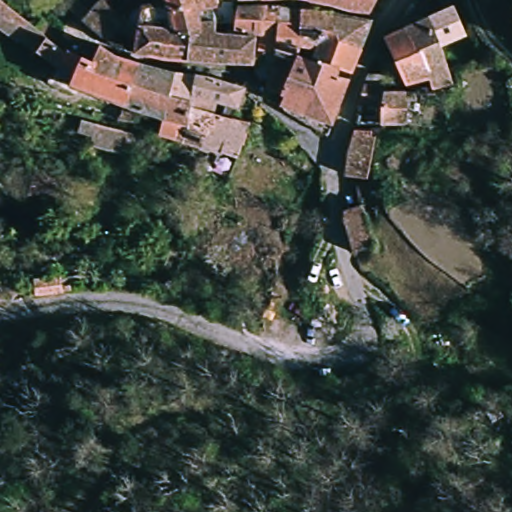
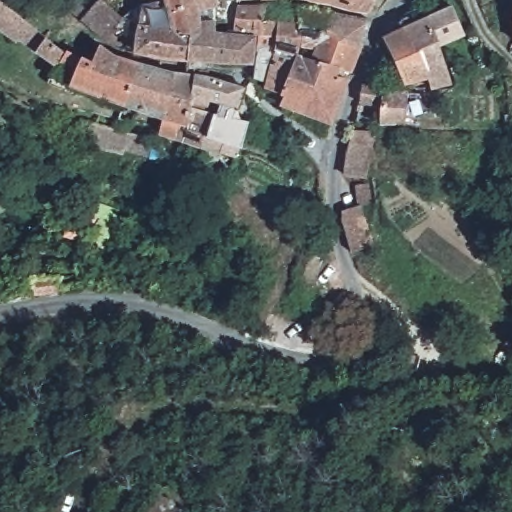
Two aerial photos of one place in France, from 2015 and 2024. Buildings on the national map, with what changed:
unchanged [(128,105),(74,85),(70,91),(48,81),(60,65),(0,15),(0,0),(9,0),(69,52),(70,49),(99,63),(106,48),(118,55),(145,62),(128,105)]
unchanged [(241,33),(261,37),(258,65),(243,62),(241,70),(198,67),(198,61),(142,51),(144,36),(124,24),(120,29),(127,37),(123,45),(110,39),(90,25),(73,8),(75,6),(79,0),(114,0),(131,15),(141,0),(244,0),(243,3),(269,4),(285,6),(304,9),(331,12),(374,17),(364,43),(354,68),(344,64),(341,70),(351,75),(330,130),(300,114),(292,109),(289,104),(288,98),(273,93),(274,89),(285,40),(265,36),(240,31),(241,33)]
unchanged [(372,8),(359,7),(324,0),(377,0),(372,8)]
unchanged [(437,91),(433,79),(413,30),(411,21),(428,12),(425,3),(432,0),(440,16),(462,8),(470,33),(448,47),(454,70),(457,84),(437,91)]
unchanged [(408,86),(391,45),(392,38),(413,30),(433,79),(415,85),(408,86)]
unchanged [(166,117),(128,105),(145,62),(179,70),(166,117)]
unchanged [(201,151),(188,146),(194,128),(183,124),(179,139),(162,135),(163,130),(166,117),(179,70),(200,74),(196,93),(220,100),(215,114),(238,120),(252,124),(243,145),(227,139),(220,158),(204,152),(201,151)]
unchanged [(243,106),(220,100),(196,93),(200,74),(248,85),(250,87),(243,106)]
unchanged [(391,108),(368,105),(372,85),(394,88),(393,91),(415,93),(412,126),(390,124),(391,108)]
unchanged [(119,121),(122,109),(126,110),(138,114),(135,124),(119,121)]
unchanged [(151,135),(151,159),(92,151),(95,139),(82,133),(78,119),(151,135)]
unchanged [(345,171),(353,127),(371,133),(362,175),(345,171)]
unchanged [(57,170),(58,200),(33,200),(32,170),(57,170)]
unchanged [(360,203),(353,183),(360,181),(366,199),(360,203)]
unchanged [(353,251),(343,209),(360,203),(375,241),(353,251)]
unchanged [(60,273),(62,292),(35,294),(34,275),(60,273)]

